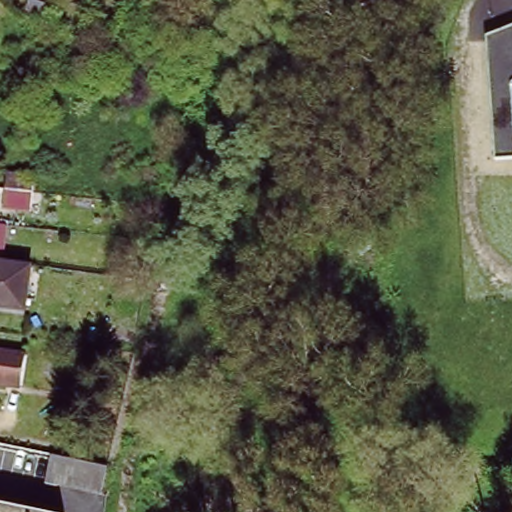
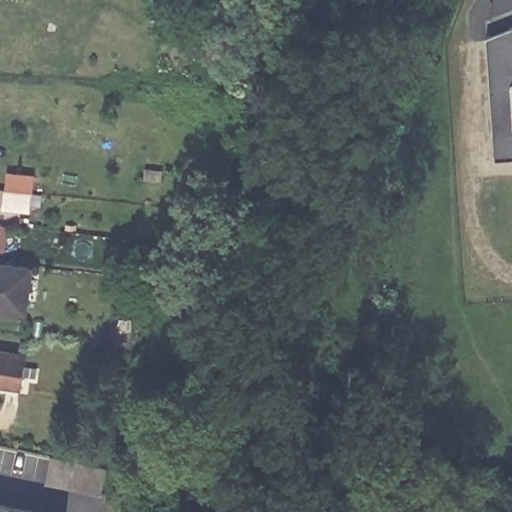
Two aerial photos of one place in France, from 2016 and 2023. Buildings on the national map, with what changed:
unchanged [(496,156),(489,34),(512,26),(512,156),(496,156)]
unchanged [(0,197),(0,190),(3,190),(5,173),(32,176),(30,193),(30,200),(19,199),(0,197)]
unchanged [(24,310),(0,307),(0,263),(30,267),(24,310)]
unchanged [(12,388),(0,386),(0,354),(19,357),(25,358),(20,390),(12,388)]
unchanged [(107,465),(101,492),(44,480),(49,454),(107,465)]
unchanged [(0,512),(0,505),(34,512),(0,512)]

